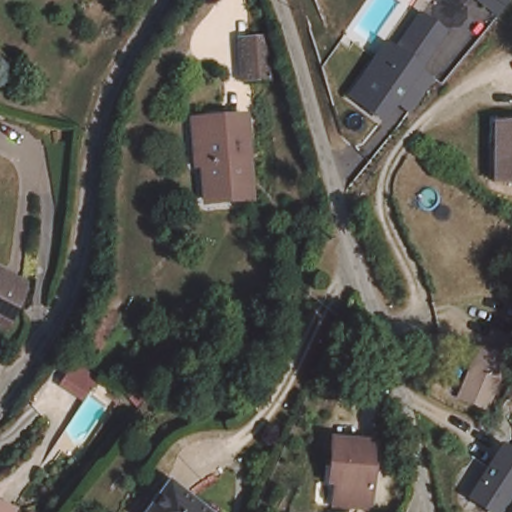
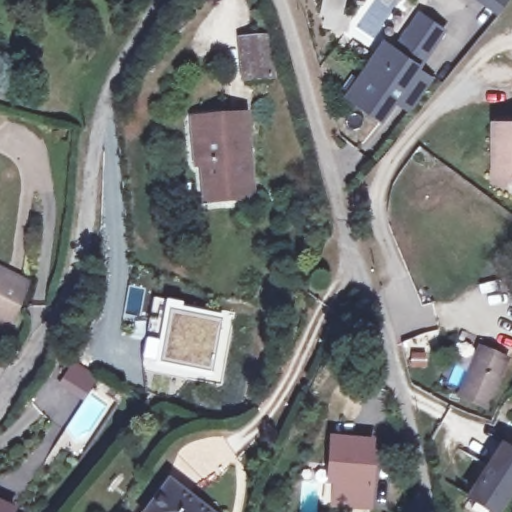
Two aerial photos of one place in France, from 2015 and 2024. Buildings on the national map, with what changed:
unchanged [(509,0),(497,16),(474,0),(509,0)]
unchanged [(344,96),(385,41),(393,47),(419,11),(446,30),(422,69),(433,78),(409,113),(398,104),(385,123),(344,96)]
unchanged [(235,42),(252,40),(260,39),(265,78),(257,79),(240,81),(235,42)]
unchanged [(247,194),(201,200),(191,121),(237,115),(247,194)]
unchanged [(487,127),(512,127),(512,183),(487,183),(487,127)]
unchanged [(8,319),(0,316),(0,266),(26,278),(8,319)]
new [(146,336),(156,337),(159,316),(151,315),(155,297),(229,313),(227,325),(230,326),(222,382),(187,375),(142,363),(146,336)]
unchanged [(484,404),(460,394),(479,348),(504,358),(484,404)]
unchanged [(497,512),(491,512),(465,497),(495,438),(512,448),(512,487),(497,512)]
unchanged [(364,470),(368,470),(363,509),(324,505),(328,466),(323,465),(326,439),(367,445),(364,470)]
unchanged [(169,484),(210,512),(148,512),(169,484)]
unchanged [(13,507),(11,512),(0,512),(0,503),(13,507)]

